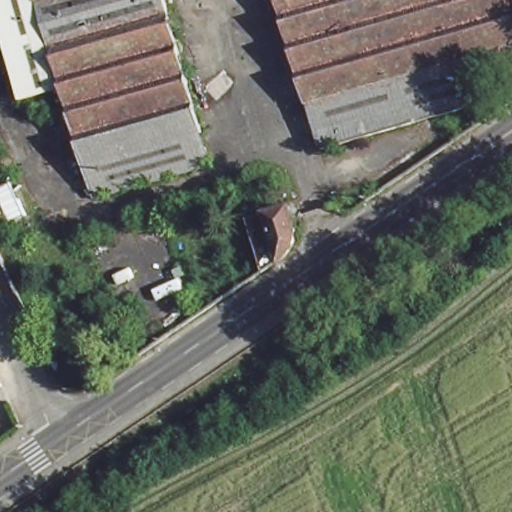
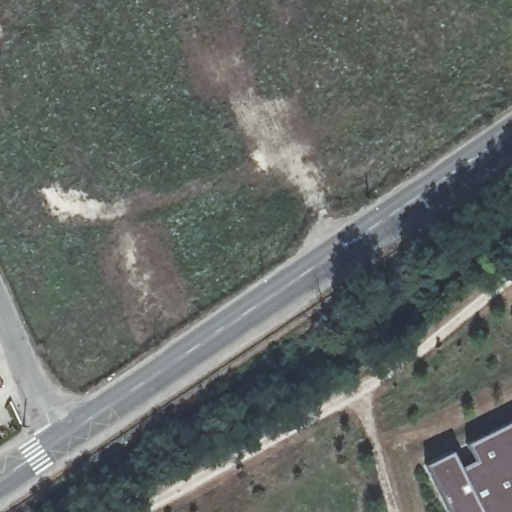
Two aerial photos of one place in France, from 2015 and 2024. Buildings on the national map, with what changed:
demolished [(97,193),(67,86),(26,95),(0,8),(0,0),(170,0),(217,161),(97,193)]
demolished [(512,69),(493,76),(494,90),(471,104),(399,124),(324,146),(283,0),(512,0),(512,70),(512,69)]
demolished [(512,84),(512,103),(486,121),(479,106),(512,84)]
demolished [(247,209),(289,195),(296,223),(293,243),(265,262),(262,265),(247,209)]
unchanged [(0,394),(0,382),(6,391),(0,394)]
new [(422,466),(446,454),(454,469),(472,460),(465,446),(512,421),(512,512),(445,512),(422,466)]

